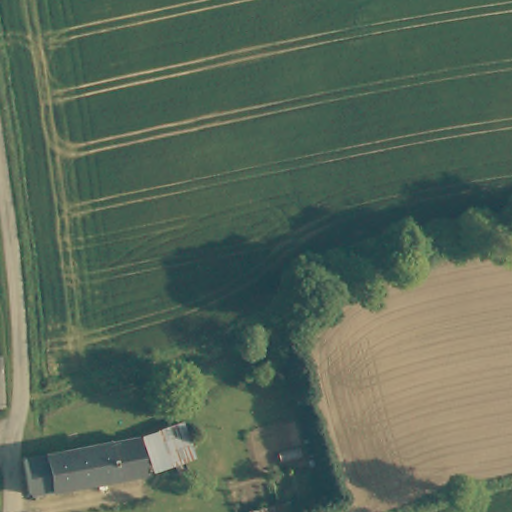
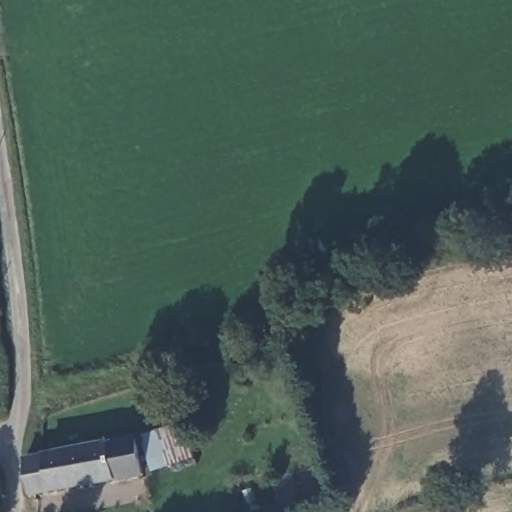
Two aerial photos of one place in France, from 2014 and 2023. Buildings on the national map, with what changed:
unchanged [(1,364),(3,411),(0,411),(0,363),(1,363),(1,364)]
unchanged [(163,435),(161,433),(181,427),(193,462),(151,476),(140,443),(163,435)]
unchanged [(121,445),(135,443),(141,480),(125,482),(28,498),(21,462),(121,445)]

